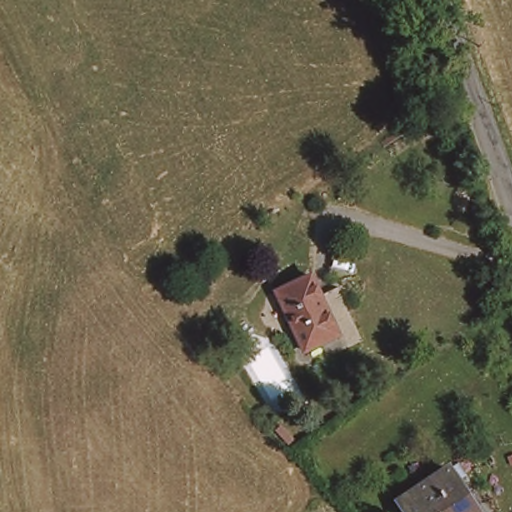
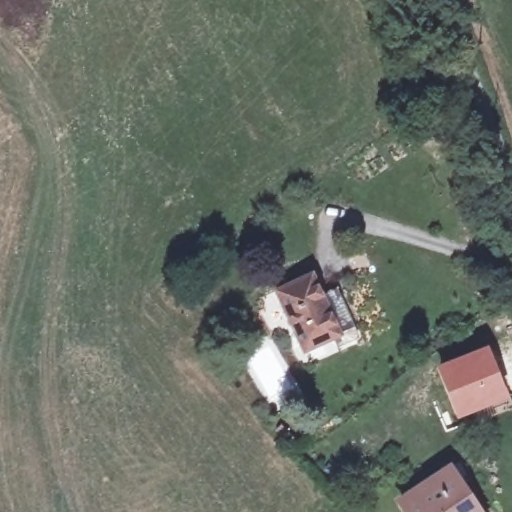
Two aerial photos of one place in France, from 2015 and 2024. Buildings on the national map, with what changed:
unchanged [(320,278),(345,337),(311,352),(285,293),(320,278)]
new [(487,346),(509,398),(457,421),(435,367),(487,346)]
unchanged [(405,503),(452,472),(467,492),(481,512),(412,512),(405,503)]

